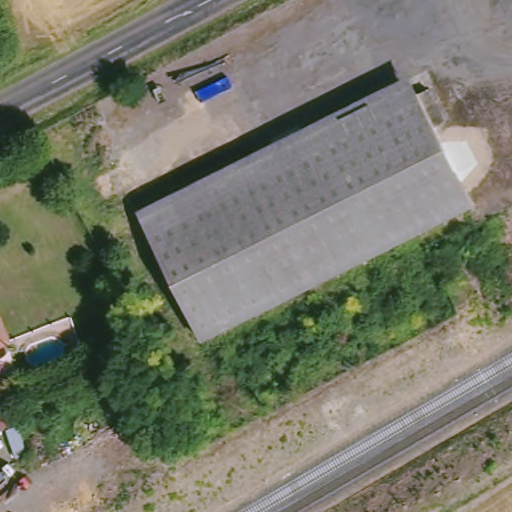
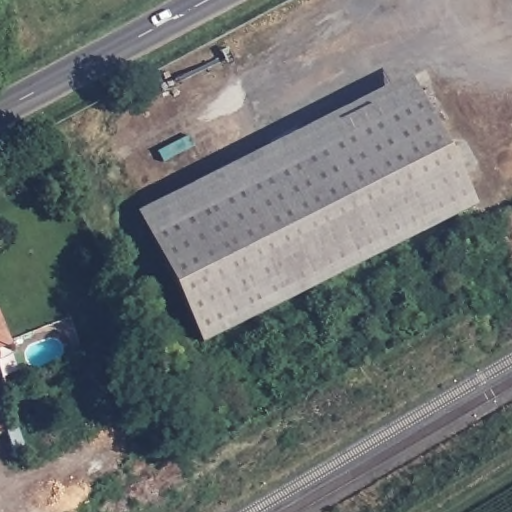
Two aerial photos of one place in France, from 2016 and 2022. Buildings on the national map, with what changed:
unchanged [(467,207),(200,341),(145,229),(425,89),(441,120),(427,127),(467,207)]
unchanged [(0,347),(0,318),(10,342),(0,347)]
unchanged [(0,432),(0,388),(11,385),(23,425),(0,432)]

